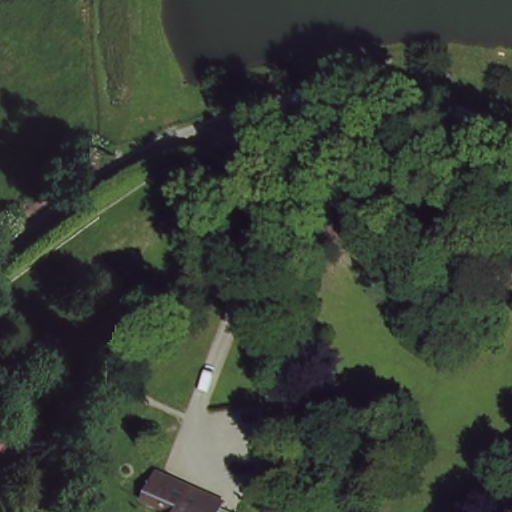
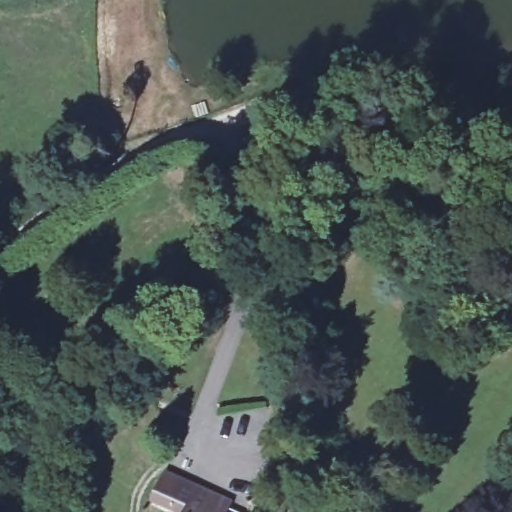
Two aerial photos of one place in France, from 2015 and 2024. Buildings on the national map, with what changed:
unchanged [(222,510),(221,512),(164,512),(151,505),(162,481),(222,510)]

